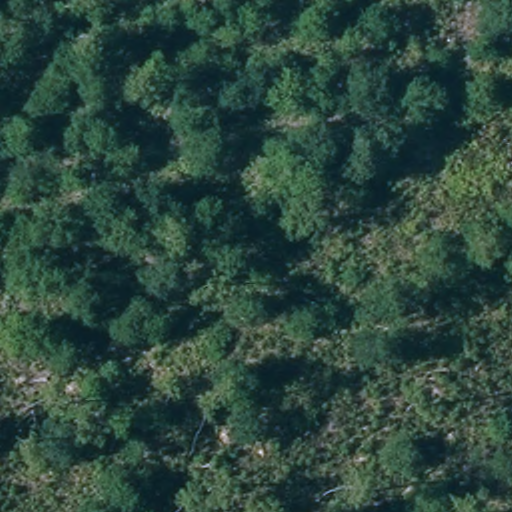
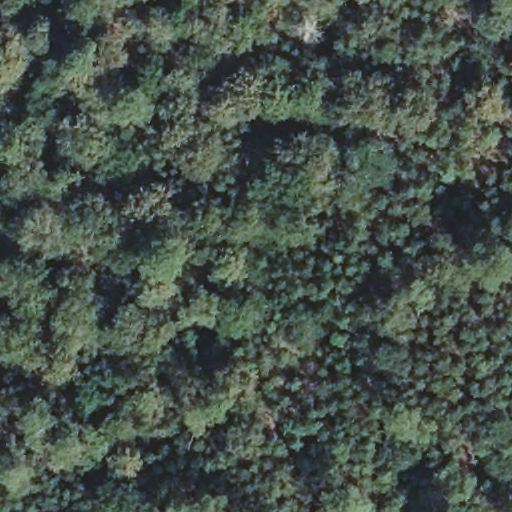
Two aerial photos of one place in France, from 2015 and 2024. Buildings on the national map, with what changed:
[]

